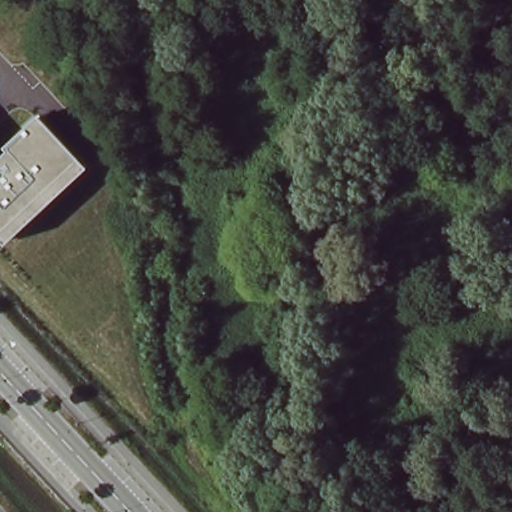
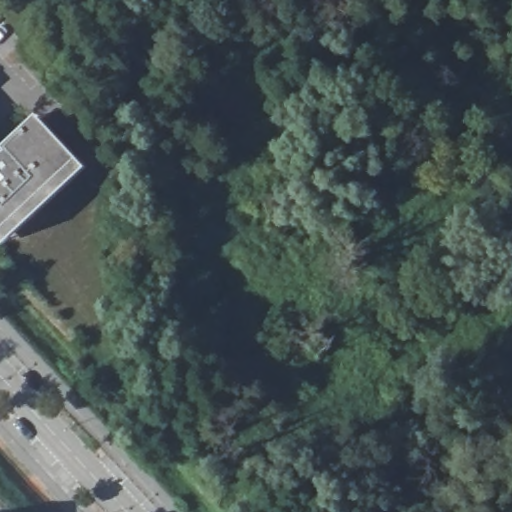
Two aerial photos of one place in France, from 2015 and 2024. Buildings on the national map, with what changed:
unchanged [(39,115),(89,168),(4,247),(0,242),(0,152),(39,115)]

